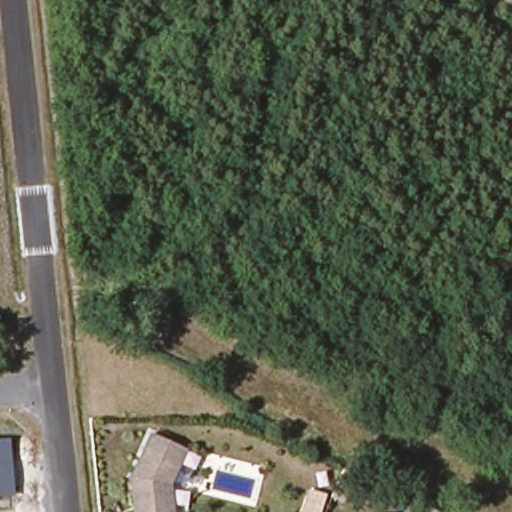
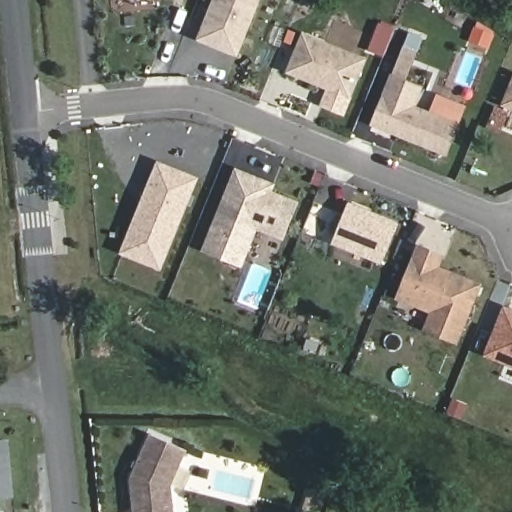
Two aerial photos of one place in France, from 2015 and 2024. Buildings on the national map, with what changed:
new [(212,0),(260,0),(237,57),(195,40),(212,0)]
new [(351,99),(286,73),(302,31),(367,58),(351,99)]
new [(369,125),(391,73),(392,74),(403,45),(404,46),(409,33),(424,38),(419,51),(408,79),(423,86),(416,105),(460,123),(446,156),(369,125)]
new [(512,77),(512,110),(500,105),(512,77)]
new [(118,254),(156,160),(199,177),(161,271),(118,254)]
new [(258,229),(243,267),(201,250),(235,166),(276,183),(273,190),(300,201),(284,240),(258,229)]
new [(382,264),(333,244),(348,201),(399,221),(382,264)]
new [(422,331),(430,313),(396,299),(417,244),(445,254),(440,266),(482,284),(457,345),(422,331)]
new [(503,304),(512,308),(512,368),(483,356),(503,304)]
unchanged [(185,452),(170,487),(173,512),(134,512),(131,481),(150,436),(185,452)]
unchanged [(9,439),(13,496),(0,497),(0,440),(9,439)]

